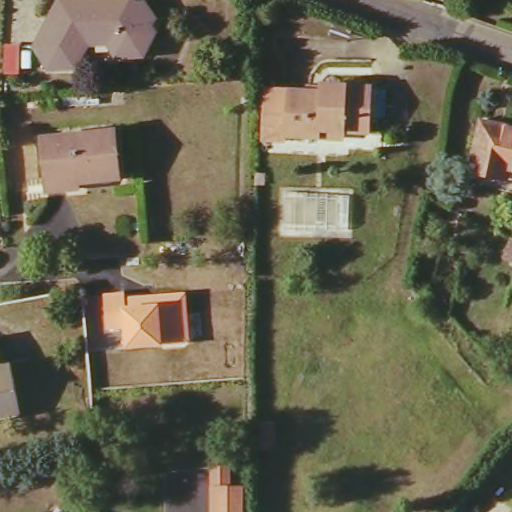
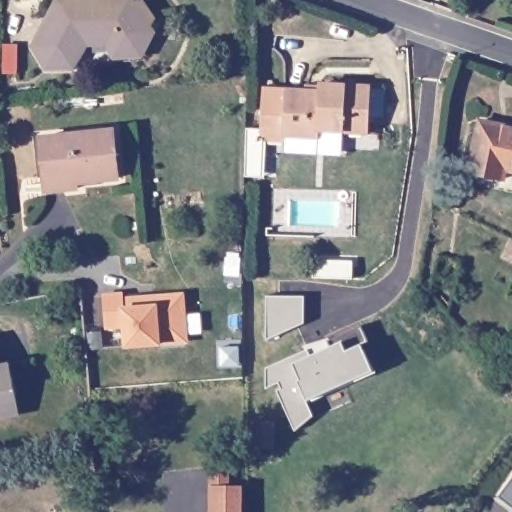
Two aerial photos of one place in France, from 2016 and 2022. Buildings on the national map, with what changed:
unchanged [(56,10),(64,11),(67,8),(68,3),(97,1),(106,11),(136,9),(148,22),(138,41),(132,40),(125,58),(117,59),(112,57),(103,47),(85,48),(73,70),(52,72),(34,52),(56,10)]
unchanged [(10,81),(20,80),(20,99),(9,100),(10,81)]
unchanged [(262,83),(320,87),(320,81),(380,85),(377,114),(363,114),(362,131),(374,131),(372,149),(342,147),(344,128),(315,126),(315,135),(282,132),(282,137),(256,134),(262,83)]
unchanged [(502,171),(499,182),(465,172),(477,130),(479,123),(509,132),(512,133),(512,174),(502,171)]
unchanged [(36,135),(110,126),(116,174),(75,179),(76,186),(42,190),(36,135)]
unchanged [(162,342),(162,347),(126,349),(125,327),(106,331),(104,295),(125,292),(125,297),(186,293),(191,342),(162,342)]
new [(266,341),(267,296),(305,296),(305,323),(266,341)]
new [(277,390),(281,388),(279,383),(266,389),(266,368),(307,351),(304,346),(330,338),(361,325),(369,342),(362,345),(374,371),(307,401),(313,415),(296,429),(277,390)]
unchanged [(15,415),(0,418),(0,369),(7,369),(15,415)]
unchanged [(212,465),(230,465),(230,486),(244,487),(244,512),(210,512),(211,487),(212,465)]

